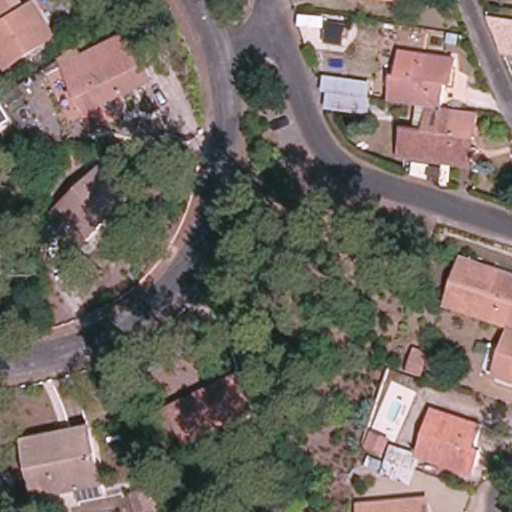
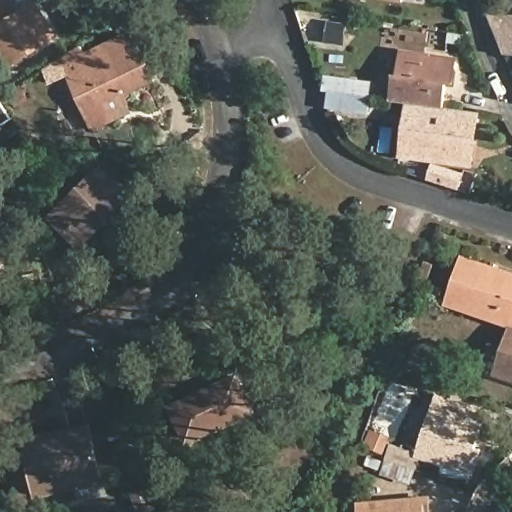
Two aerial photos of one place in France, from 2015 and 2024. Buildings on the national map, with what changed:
unchanged [(0,65),(0,0),(5,0),(14,15),(36,1),(55,36),(2,69),(0,65)]
unchanged [(126,31),(136,48),(151,75),(142,81),(106,103),(116,120),(99,132),(56,64),(74,51),(80,61),(126,31)]
unchanged [(392,99),(396,71),(423,75),(426,51),(459,56),(456,84),(448,83),(445,105),(430,104),(392,99)]
unchanged [(370,114),(328,108),(331,90),(325,90),(327,71),(360,76),(357,93),(372,95),(370,114)]
unchanged [(445,105),(481,109),(478,136),(471,135),(467,162),(400,153),(403,125),(427,128),(430,104),(445,105)]
unchanged [(432,179),(408,171),(411,163),(435,171),(432,179)]
unchanged [(52,217),(59,210),(98,171),(127,199),(87,240),(81,246),(52,217)]
unchanged [(0,267),(0,236),(12,242),(0,267)]
unchanged [(443,305),(452,279),(460,255),(498,268),(512,272),(512,314),(508,326),(443,305)]
unchanged [(510,327),(512,328),(512,381),(493,375),(510,327)]
unchanged [(184,440),(170,409),(235,380),(247,411),(184,440)]
unchanged [(385,473),(390,460),(385,458),(390,443),(418,452),(432,408),(486,425),(478,450),(485,452),(477,475),(423,458),(420,469),(415,483),(385,473)]
unchanged [(101,483),(36,493),(28,446),(26,438),(69,431),(91,427),(101,483)]
unchanged [(124,500),(140,495),(146,512),(128,512),(124,500)]
unchanged [(419,497),(420,512),(355,512),(354,503),(419,497)]

